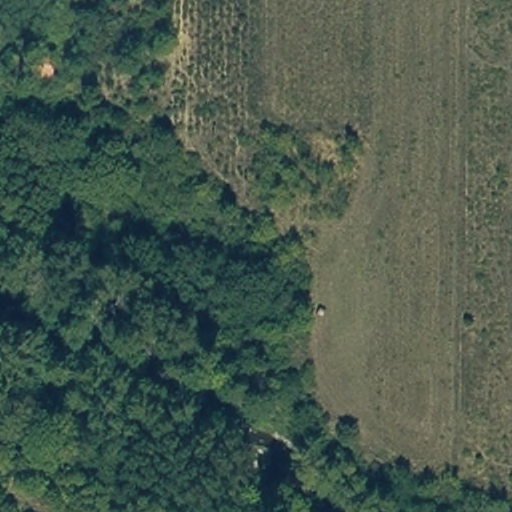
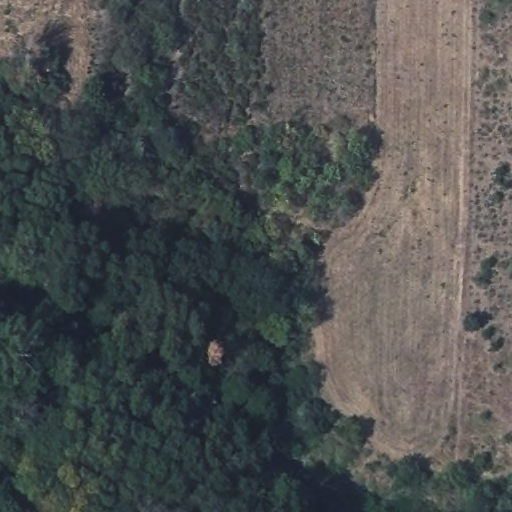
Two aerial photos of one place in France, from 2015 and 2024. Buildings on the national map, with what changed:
unchanged [(34,51),(55,51),(56,76),(35,74),(34,51)]

